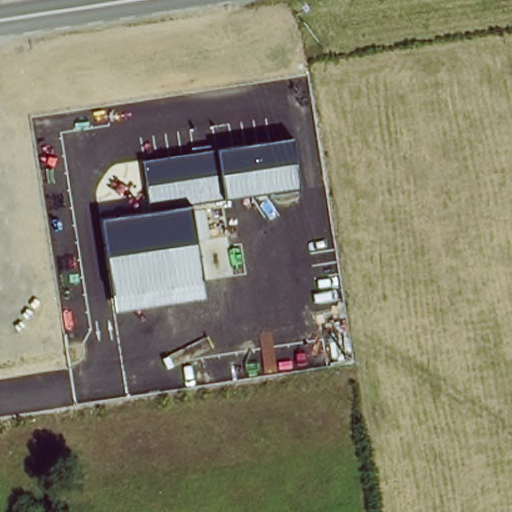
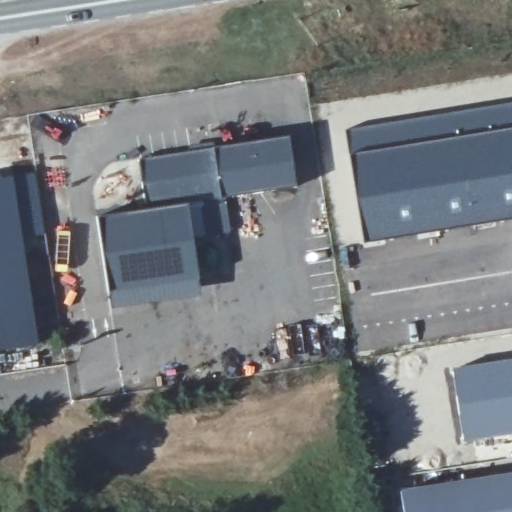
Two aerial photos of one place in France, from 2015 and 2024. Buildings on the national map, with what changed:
new [(365,244),(345,128),(512,101),(512,220),(365,244)]
unchanged [(111,310),(98,217),(147,210),(140,159),(214,148),(289,137),(297,187),(221,199),(189,204),(190,210),(202,208),(205,236),(194,238),(202,296),(111,310)]
new [(51,170),(59,226),(42,229),(56,334),(0,342),(0,176),(51,170)]
new [(483,428),(473,362),(512,356),(512,424),(483,428)]
new [(399,492),(512,475),(512,512),(402,512),(399,492)]

